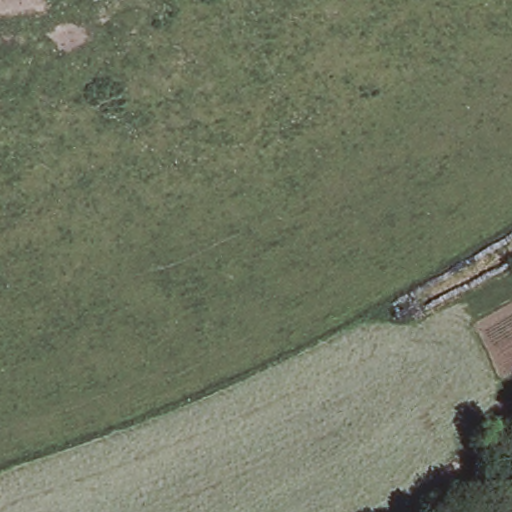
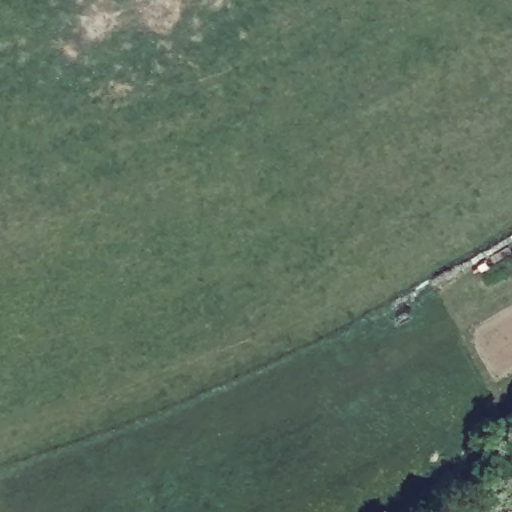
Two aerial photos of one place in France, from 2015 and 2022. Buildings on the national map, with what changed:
unchanged [(494,512),(491,512),(494,511),(494,512)]

